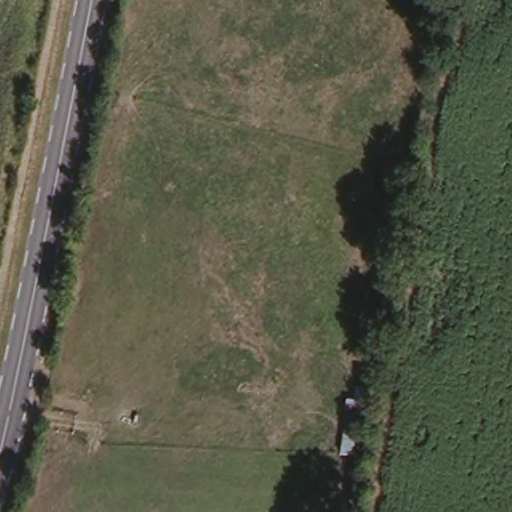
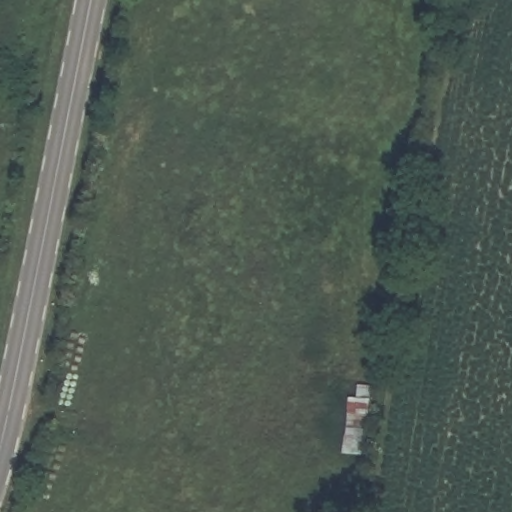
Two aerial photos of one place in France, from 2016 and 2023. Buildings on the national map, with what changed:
unchanged [(341,447),(345,405),(363,407),(360,447),(341,447)]

